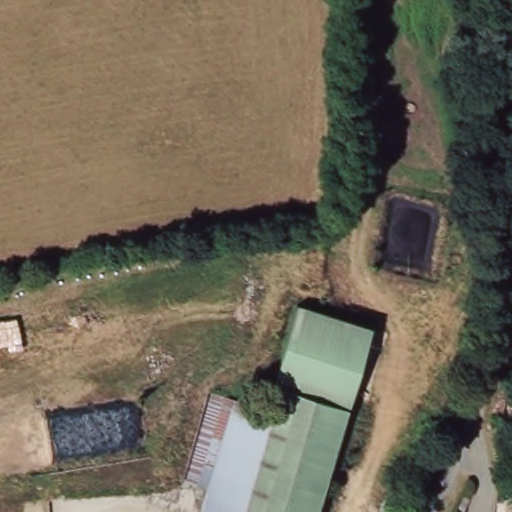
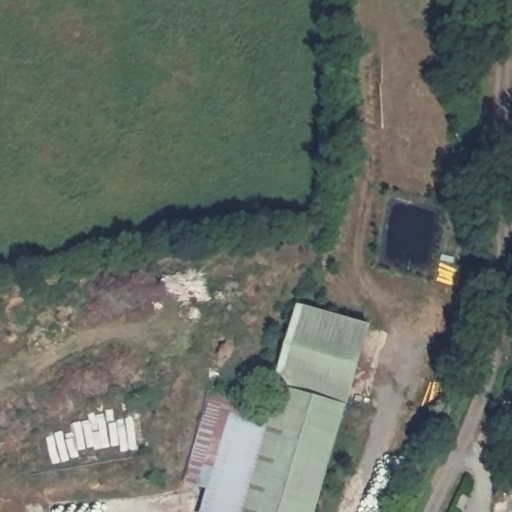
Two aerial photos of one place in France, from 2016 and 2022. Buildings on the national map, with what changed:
unchanged [(183,479),(208,395),(272,414),(281,384),(273,381),(296,305),(369,326),(347,403),(315,512),(202,512),(209,487),(183,479)]

